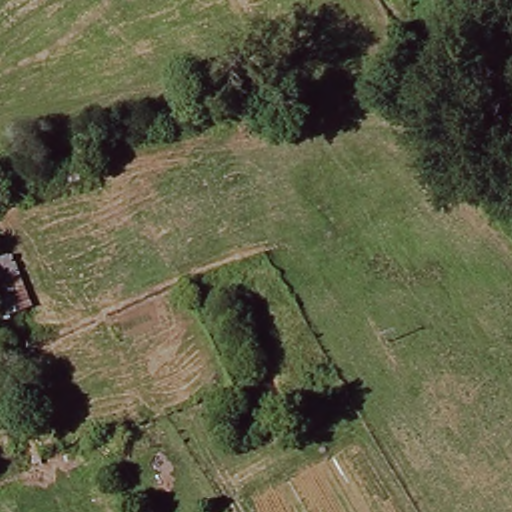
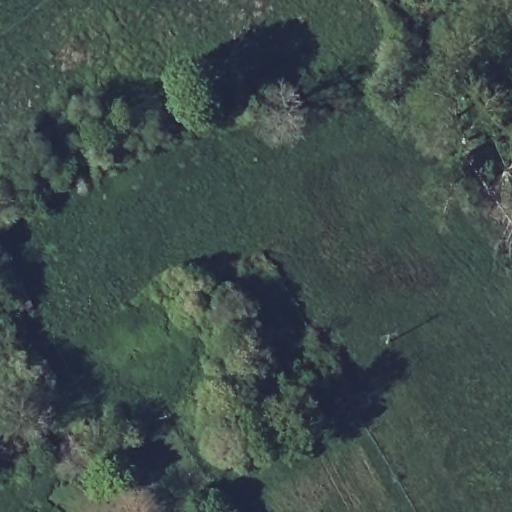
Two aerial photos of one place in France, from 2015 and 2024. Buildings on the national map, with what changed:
unchanged [(0,311),(0,265),(11,260),(32,310),(4,320),(0,311)]

